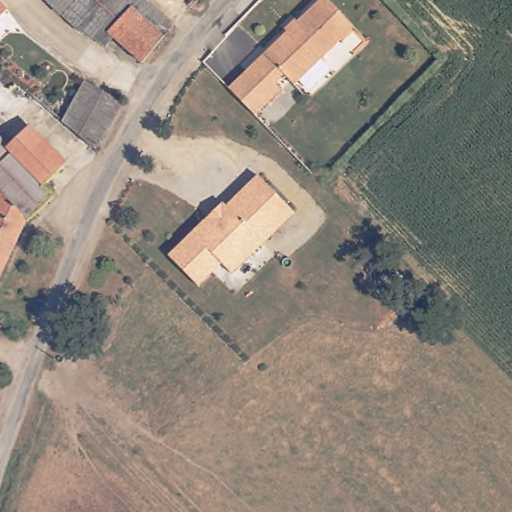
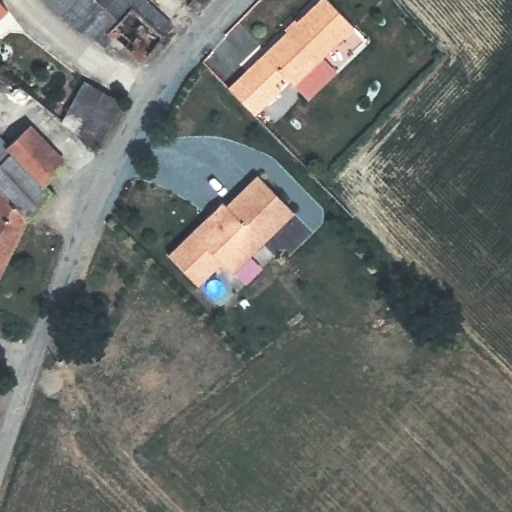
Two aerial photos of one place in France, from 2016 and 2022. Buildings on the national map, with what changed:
unchanged [(0,6),(0,0),(3,0),(4,1),(0,6)]
unchanged [(82,23),(56,0),(103,0),(85,21),(82,23)]
unchanged [(111,24),(101,35),(85,21),(103,0),(151,0),(171,18),(143,55),(111,24)]
unchanged [(229,94),(323,0),(336,0),(361,25),(295,90),(285,81),(276,89),(282,95),(257,121),(229,94)]
unchanged [(79,79),(123,104),(100,148),(60,116),(79,79)]
unchanged [(3,134),(22,115),(59,153),(40,171),(50,181),(24,206),(0,182),(0,130),(3,134)]
unchanged [(224,209),(258,174),(293,213),(229,274),(221,267),(197,291),(166,257),(218,203),(224,209)]
unchanged [(24,206),(0,269),(0,182),(24,206)]

